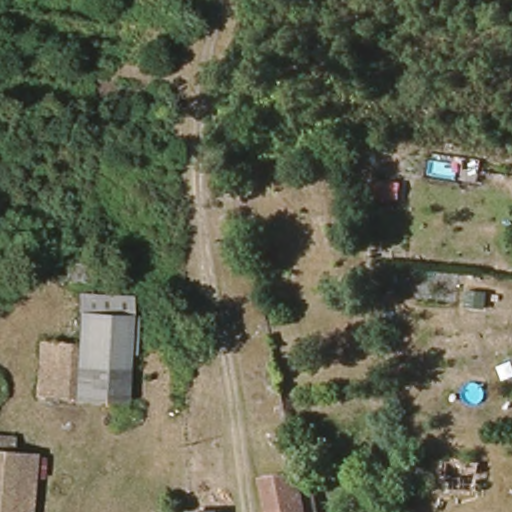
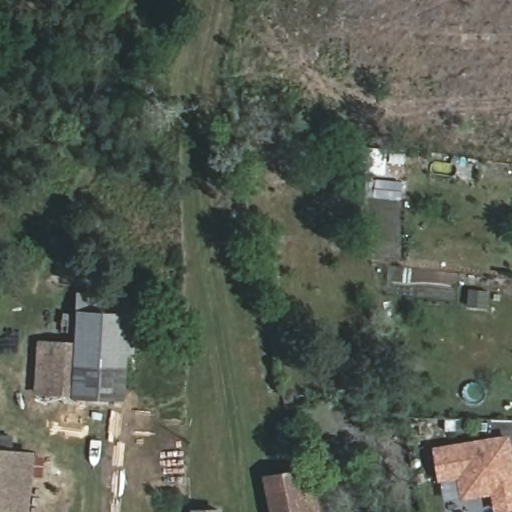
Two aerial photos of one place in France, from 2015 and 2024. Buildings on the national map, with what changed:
unchanged [(73,347),(75,317),(134,324),(125,405),(69,398),(73,347)]
unchanged [(69,347),(73,347),(69,398),(34,393),(41,344),(69,347)]
new [(434,450),(509,437),(512,454),(512,510),(497,512),(494,512),(491,495),(459,500),(458,479),(436,482),(434,450)]
demolished [(488,443),(488,447),(447,440),(488,443)]
unchanged [(8,512),(0,512),(0,459),(14,460),(8,512)]
unchanged [(26,512),(8,512),(14,460),(31,461),(29,498),(26,512)]
unchanged [(217,464),(219,512),(190,512),(188,465),(217,464)]
unchanged [(299,472),(302,485),(314,484),(319,512),(271,512),(265,479),(299,472)]

